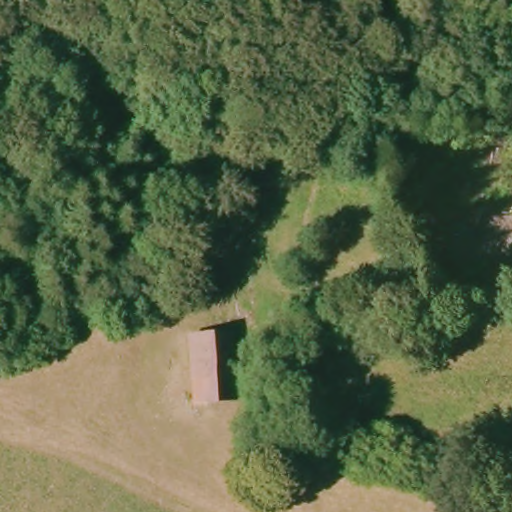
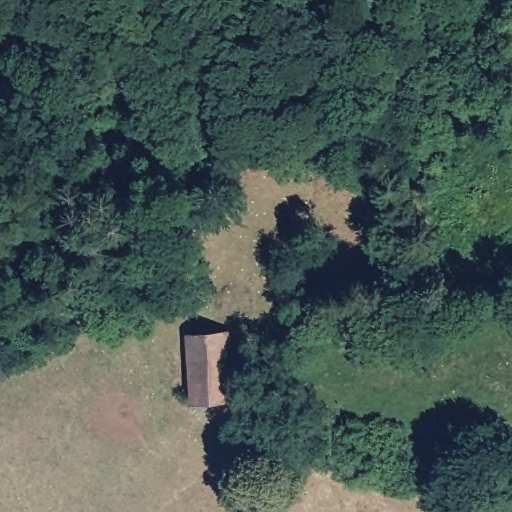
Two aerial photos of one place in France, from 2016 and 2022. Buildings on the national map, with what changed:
unchanged [(192,402),(187,334),(229,331),(232,398),(192,402)]

